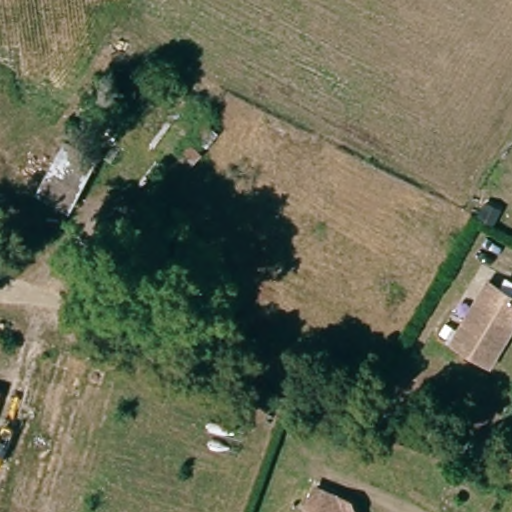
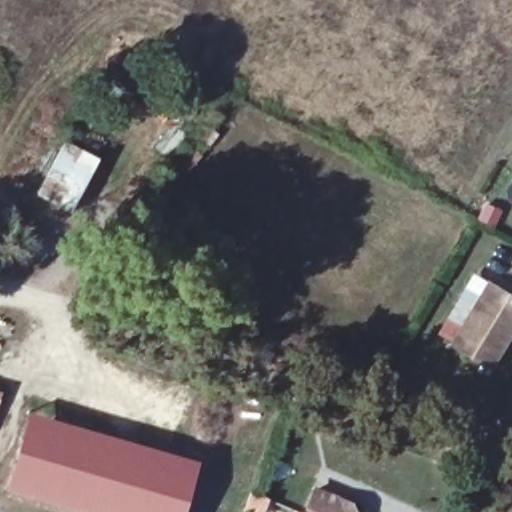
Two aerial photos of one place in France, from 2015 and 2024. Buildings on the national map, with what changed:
unchanged [(94,163),(104,167),(91,194),(80,192),(44,178),(62,138),(99,152),(94,163)]
unchanged [(476,312),(463,305),(487,266),(501,273),(494,285),(512,295),(512,327),(510,332),(512,333),(512,337),(495,367),(457,344),(476,312)]
demolished [(90,361),(91,369),(104,372),(101,383),(90,382),(49,512),(0,512),(0,477),(39,345),(90,361)]
new [(27,412),(200,461),(184,512),(87,512),(6,489),(27,412)]
new [(303,508),(313,486),(355,504),(358,512),(306,512),(307,510),(303,508)]
demolished [(370,512),(322,512),(321,508),(327,491),(368,506),(370,512)]

